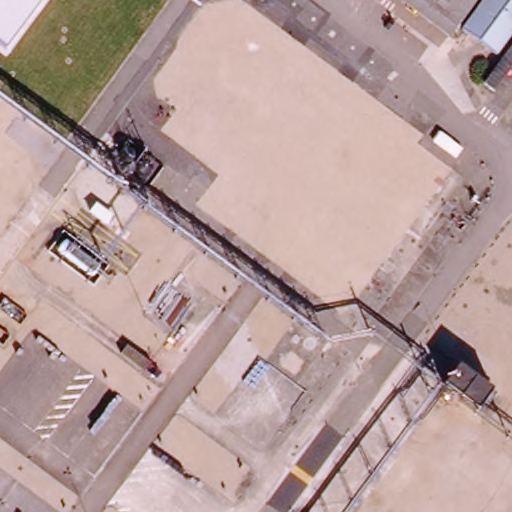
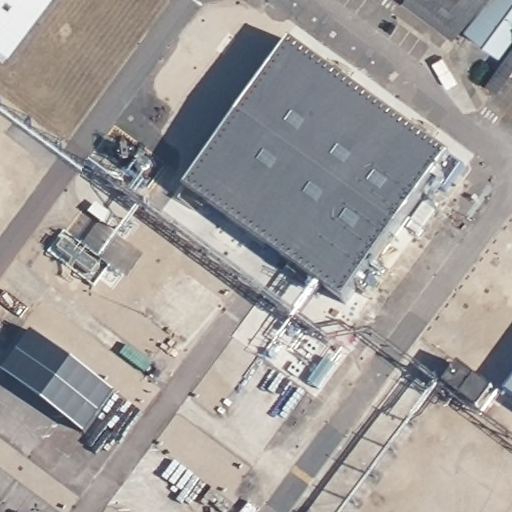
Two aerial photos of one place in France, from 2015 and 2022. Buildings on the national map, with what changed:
unchanged [(0,44),(0,0),(42,0),(7,48),(0,44)]
unchanged [(458,24),(428,0),(478,0),(458,24)]
unchanged [(485,0),(512,0),(512,32),(494,54),(462,28),(485,0)]
new [(296,44),(456,156),(347,306),(185,189),(296,44)]
new [(35,333),(116,394),(86,434),(5,374),(35,333)]
unchanged [(462,360),(499,391),(479,418),(442,386),(462,360)]

